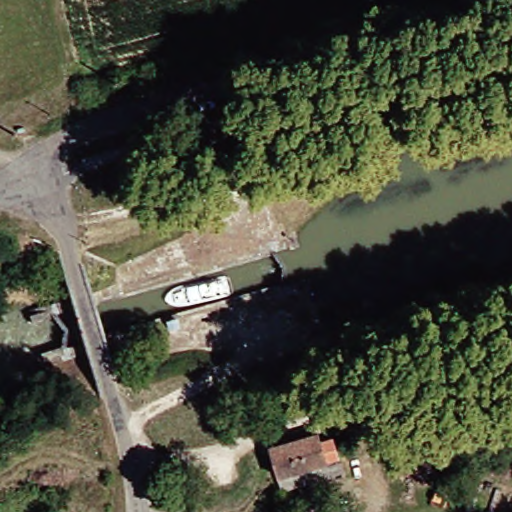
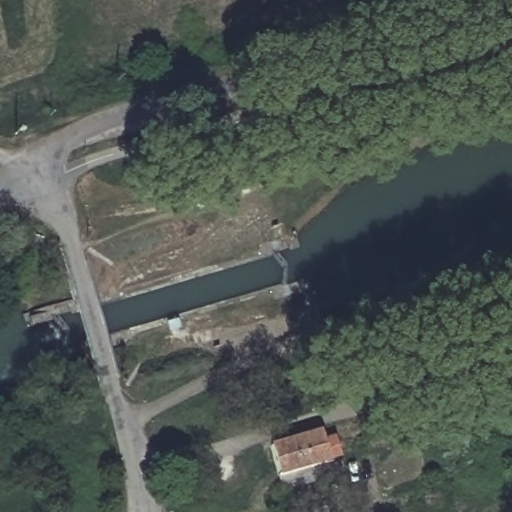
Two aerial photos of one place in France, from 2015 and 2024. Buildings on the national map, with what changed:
unchanged [(271,446),(318,433),(326,460),(278,475),(271,446)]

